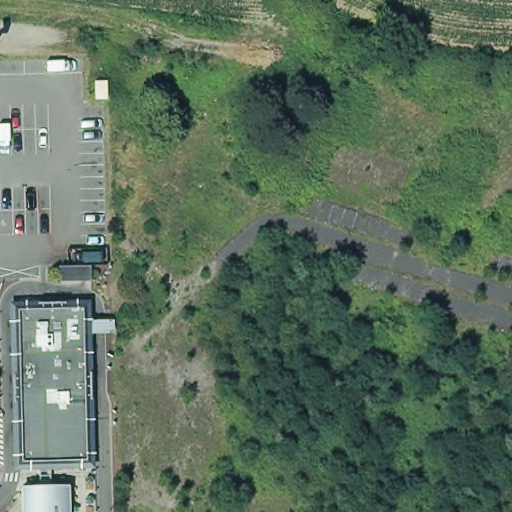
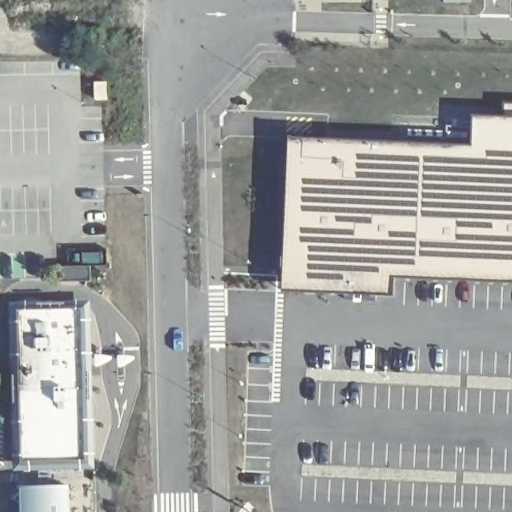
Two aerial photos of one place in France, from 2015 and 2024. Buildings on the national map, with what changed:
new [(288,137),(471,145),(473,116),(512,118),(512,280),(391,277),(390,295),(281,289),(288,137)]
demolished [(412,248),(420,222),(496,247),(487,273),(412,248)]
demolished [(89,299),(93,467),(12,468),(9,300),(89,299)]
new [(48,464),(48,489),(65,488),(67,486),(68,487),(66,489),(67,512),(21,512),(21,490),(19,488),(20,487),(22,489),(39,489),(38,464),(21,464),(20,401),(18,401),(18,394),(20,394),(18,345),(17,345),(16,338),(18,338),(17,308),(38,307),(37,303),(39,303),(40,311),(47,311),(47,302),(71,306),(71,311),(83,310),(87,463),(48,464)]

